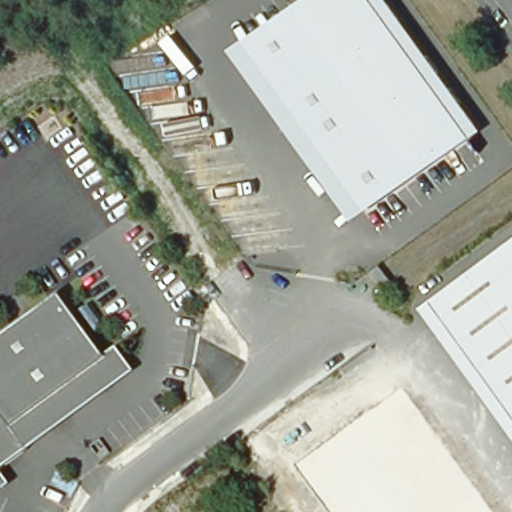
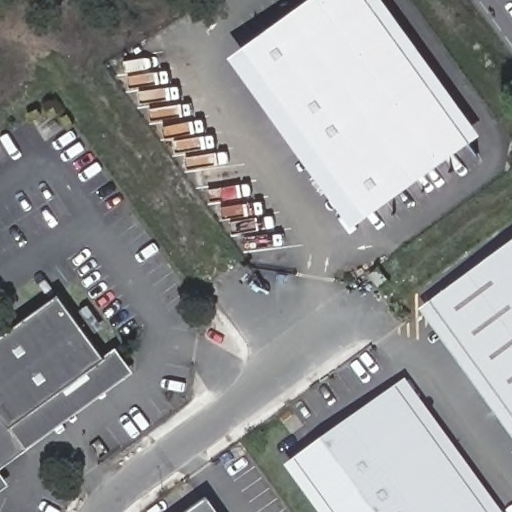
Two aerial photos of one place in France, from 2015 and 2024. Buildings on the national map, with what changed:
unchanged [(231,55),(310,0),(385,0),(482,133),(355,225),(231,55)]
unchanged [(512,250),(512,413),(435,305),(512,250)]
unchanged [(45,437),(0,471),(0,336),(73,280),(121,344),(28,415),(45,437)]
unchanged [(121,344),(138,366),(45,437),(28,415),(121,344)]
new [(407,379),(504,512),(319,512),(287,467),(407,379)]
new [(210,501),(217,512),(194,512),(210,501)]

